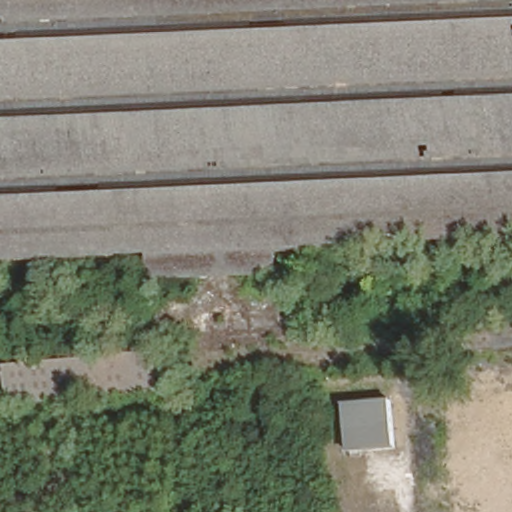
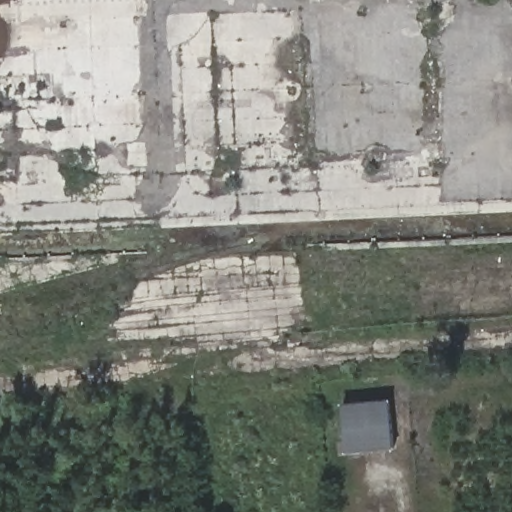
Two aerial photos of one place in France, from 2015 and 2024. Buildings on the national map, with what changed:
demolished [(0,263),(0,0),(512,0),(512,237),(0,263)]
unchanged [(392,452),(347,456),(342,405),(387,400),(392,452)]
demolished [(448,512),(445,405),(512,403),(512,512),(448,512)]

